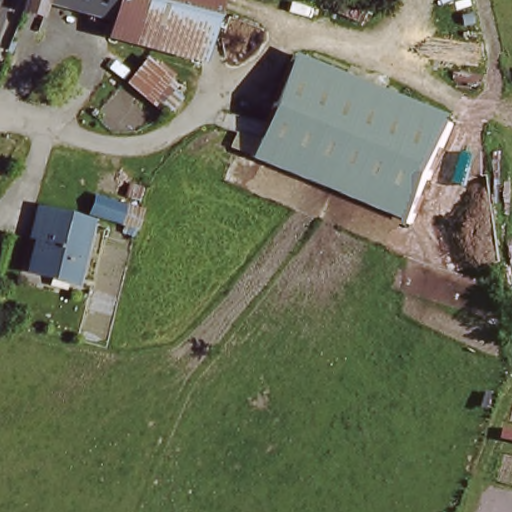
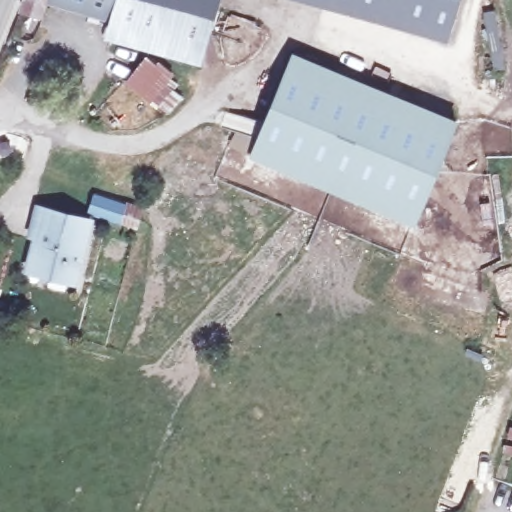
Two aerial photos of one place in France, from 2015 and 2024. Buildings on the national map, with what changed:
unchanged [(24,5),(25,0),(49,0),(45,12),(30,8),(24,5)]
unchanged [(116,34),(120,18),(60,0),(222,0),(205,59),(116,34)]
new [(306,0),(458,0),(447,39),(306,0)]
unchanged [(149,55),(175,74),(155,98),(131,79),(149,55)]
unchanged [(295,59),(456,128),(415,227),(251,158),(295,59)]
unchanged [(100,195),(130,205),(123,223),(92,214),(100,195)]
unchanged [(94,221),(79,281),(33,269),(43,233),(33,231),(39,207),(94,221)]

